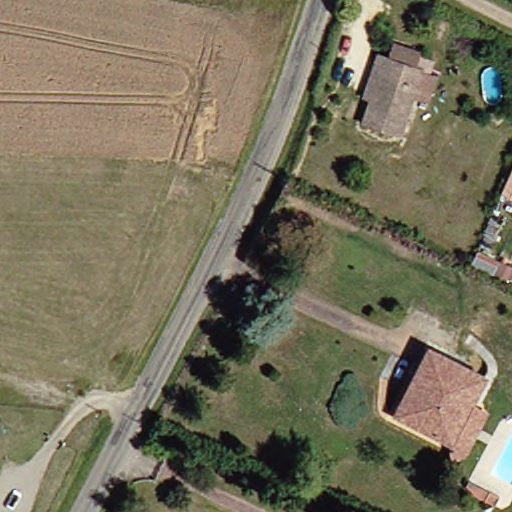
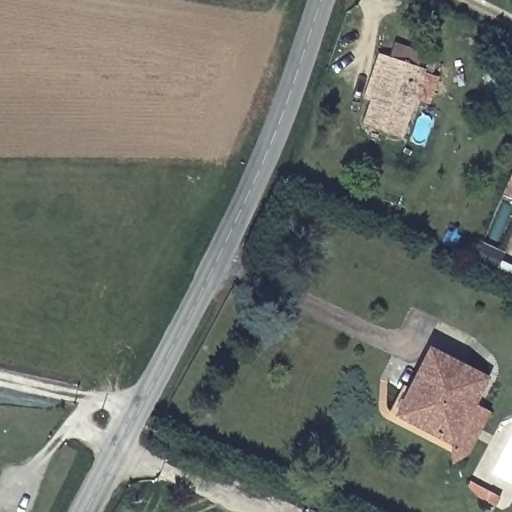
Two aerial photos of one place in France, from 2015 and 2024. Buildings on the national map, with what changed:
unchanged [(374,100),(367,97),(378,70),(384,54),(394,58),(399,44),(427,55),(421,68),(428,71),(427,74),(440,80),(430,103),(417,98),(402,135),(365,120),(374,100)]
unchanged [(505,189),(512,170),(512,203),(501,198),(505,189)]
unchanged [(431,350),(489,379),(475,406),(491,414),(460,470),(455,466),(457,445),(397,415),(431,350)]

